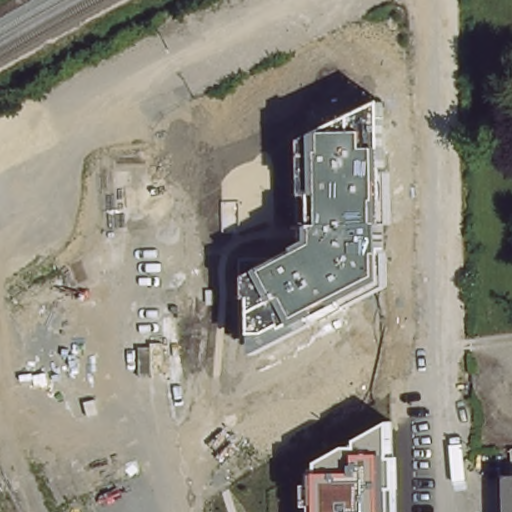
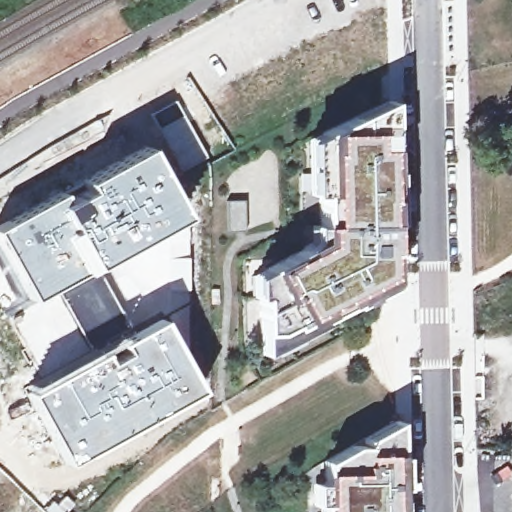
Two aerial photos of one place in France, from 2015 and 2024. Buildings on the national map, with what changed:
new [(175,99),(209,157),(180,174),(149,115),(175,99)]
unchanged [(254,272),(316,240),(317,195),(305,193),(308,132),(388,101),(390,281),(257,357),(254,272)]
new [(185,214),(103,265),(97,269),(59,288),(28,303),(0,250),(0,224),(144,143),(185,214)]
new [(246,198),(246,231),(226,231),(225,199),(246,198)]
new [(185,214),(190,227),(192,240),(192,280),(191,312),(192,352),(188,354),(184,356),(162,317),(130,331),(127,325),(120,313),(112,291),(116,288),(103,265),(185,214)]
new [(97,269),(112,291),(120,313),(84,334),(59,288),(97,269)]
new [(92,347),(127,325),(130,331),(162,317),(184,356),(200,390),(65,465),(22,388),(92,347)]
unchanged [(400,419),(402,512),(315,512),(315,465),(400,419)]
new [(55,502),(64,493),(75,503),(66,512),(47,512),(44,508),(52,500),(55,502)]

